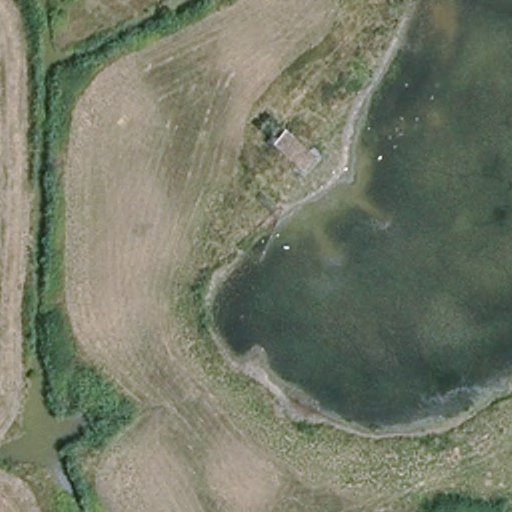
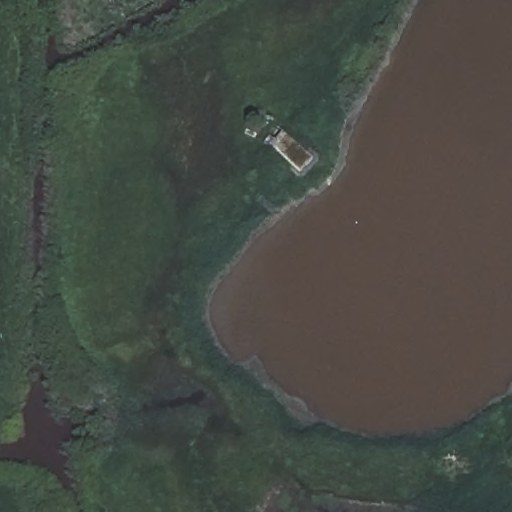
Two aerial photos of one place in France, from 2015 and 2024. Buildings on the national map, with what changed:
unchanged [(318,158),(304,177),(270,146),(285,129),(318,158)]

